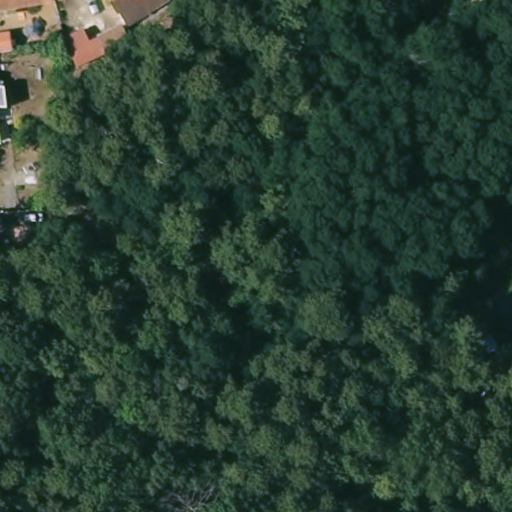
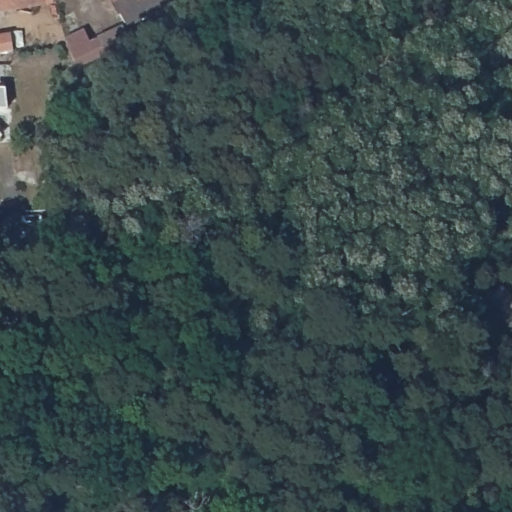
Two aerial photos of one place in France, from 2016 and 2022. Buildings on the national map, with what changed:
unchanged [(0,10),(0,0),(44,0),(44,2),(0,10)]
unchanged [(112,0),(160,0),(124,21),(112,0)]
unchanged [(120,22),(128,37),(121,42),(116,45),(106,49),(97,33),(120,22)]
unchanged [(85,51),(88,58),(81,62),(77,53),(85,51)]
unchanged [(487,296),(494,304),(487,311),(478,303),(487,296)]
unchanged [(500,317),(496,321),(492,317),(496,313),(500,317)]
unchanged [(512,314),(512,338),(500,326),(512,314)]

